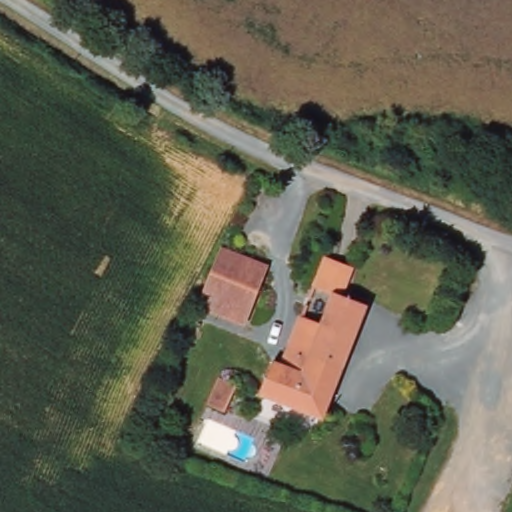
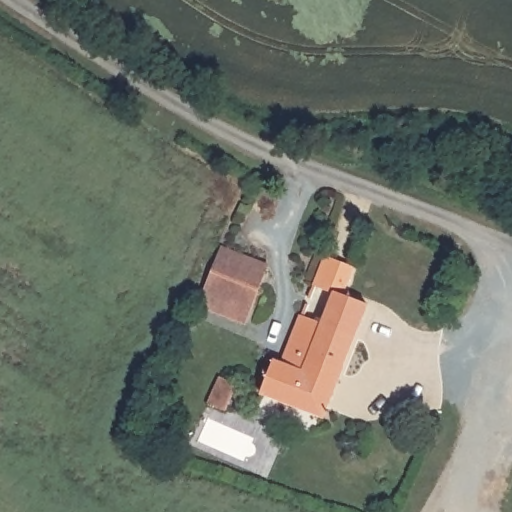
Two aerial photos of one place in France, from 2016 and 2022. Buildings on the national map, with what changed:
unchanged [(465,134),(482,137),(479,151),(463,147),(465,134)]
unchanged [(489,184),(512,192),(512,216),(482,206),(489,184)]
unchanged [(220,247),(265,264),(242,322),(199,306),(220,247)]
unchanged [(324,422),(259,397),(272,363),(279,366),(300,316),(318,322),(330,293),(318,288),(327,262),(352,271),(343,298),(367,307),(324,422)]
unchanged [(236,385),(227,408),(207,402),(217,377),(236,385)]

